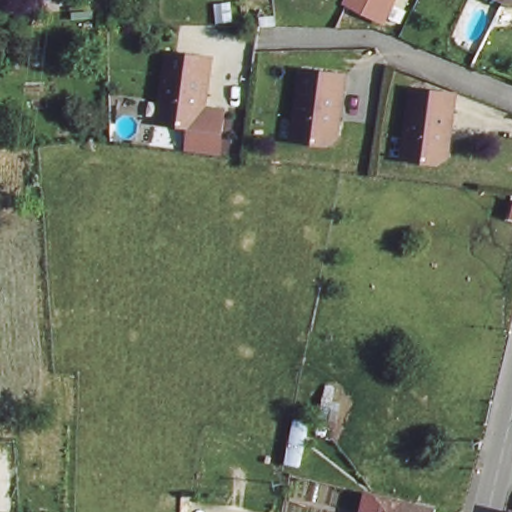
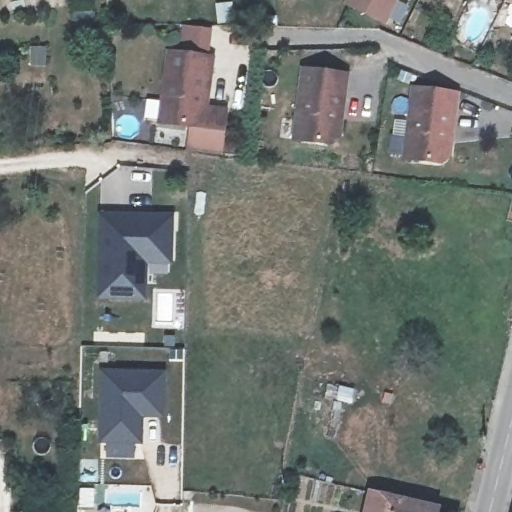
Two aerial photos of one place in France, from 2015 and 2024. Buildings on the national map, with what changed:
unchanged [(394,0),(383,22),(347,5),(349,0),(394,0)]
unchanged [(207,126),(197,133),(163,128),(172,59),(214,65),(207,126)]
unchanged [(337,138),(329,144),(294,140),(301,70),(345,75),(337,138)]
unchanged [(448,155),(439,162),(404,157),(412,89),(455,94),(448,155)]
new [(197,133),(207,126),(210,104),(227,106),(223,155),(186,150),(190,132),(197,133)]
new [(102,215),(171,216),(170,254),(144,254),(143,296),(100,295),(102,215)]
unchanged [(497,320),(501,303),(512,306),(512,314),(509,324),(497,320)]
new [(98,443),(100,370),(164,372),(164,418),(143,418),(142,444),(98,443)]
unchanged [(375,492),(415,502),(442,508),(441,512),(370,512),(375,492)]

